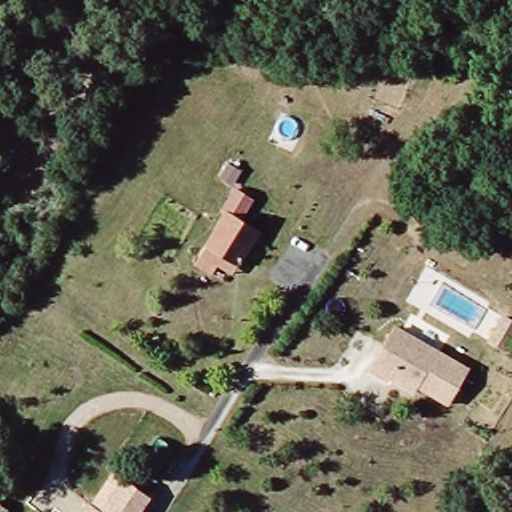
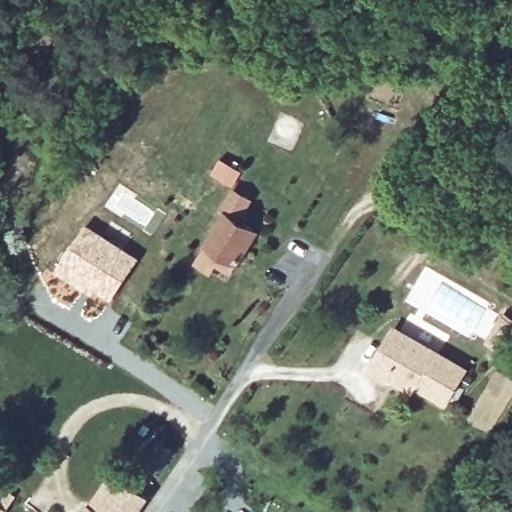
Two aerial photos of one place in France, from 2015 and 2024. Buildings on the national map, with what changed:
unchanged [(199,246),(202,241),(221,210),(218,207),(232,185),(247,194),(235,215),(254,227),(233,261),(228,267),(199,246)]
new [(87,222),(140,257),(111,300),(95,289),(92,293),(55,267),(87,222)]
unchanged [(512,346),(508,354),(488,343),(502,315),(512,320),(512,346)]
unchanged [(449,401),(411,380),(409,384),(390,374),(388,379),(373,370),(396,328),(467,368),(449,401)]
unchanged [(119,478),(144,494),(132,512),(77,512),(85,499),(98,507),(119,478)]

